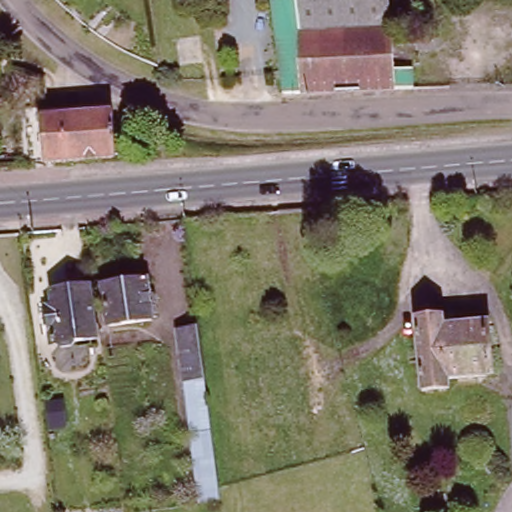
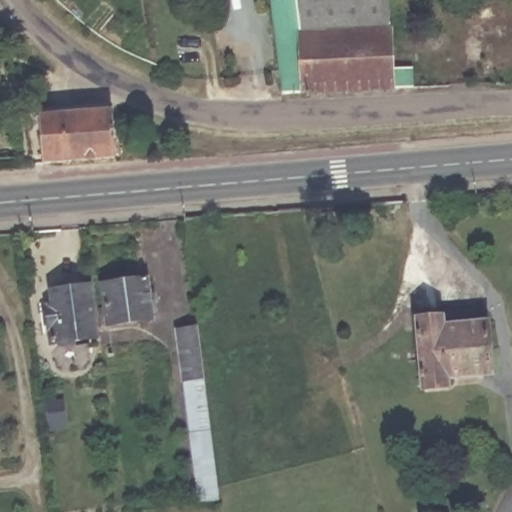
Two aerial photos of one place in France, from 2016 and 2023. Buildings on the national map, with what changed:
unchanged [(408,66),(412,69),(413,85),(282,91),(270,0),(388,0),(392,67),(408,66)]
unchanged [(112,123),(114,160),(42,166),(41,157),(30,158),(25,119),(38,118),(111,113),(112,123)]
unchanged [(146,278),(151,319),(108,325),(101,284),(146,278)]
unchanged [(89,286),(96,338),(74,341),(70,346),(60,347),(55,344),(51,344),(46,307),(53,305),(52,292),(89,286)]
unchanged [(449,379),(449,388),(421,389),(415,319),(443,318),(444,326),(488,322),(493,374),(449,379)]
unchanged [(193,434),(185,380),(184,380),(177,330),(198,328),(211,432),(193,434)]
unchanged [(219,501),(201,503),(193,434),(211,432),(219,501)]

